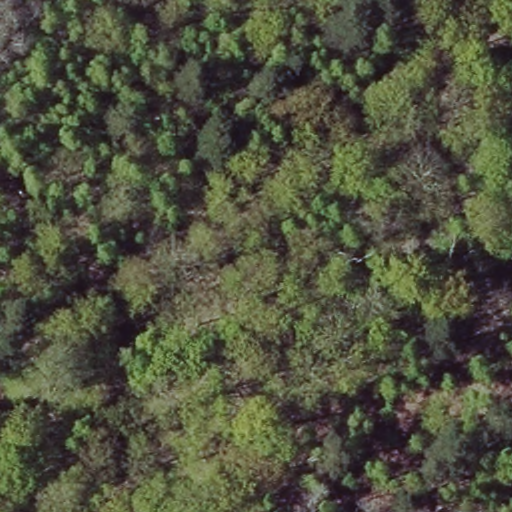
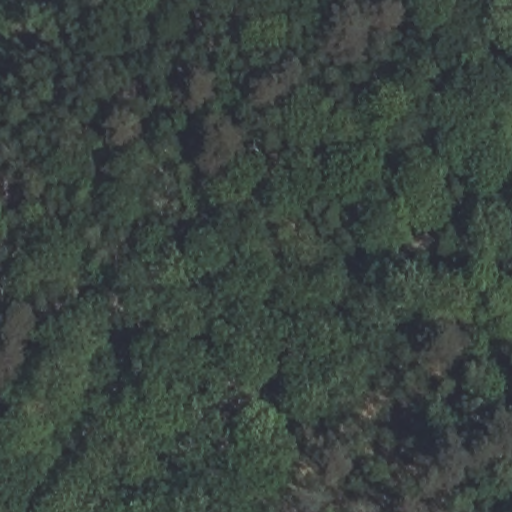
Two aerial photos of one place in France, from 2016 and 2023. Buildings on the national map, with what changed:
unchanged [(512,100),(512,112),(507,102),(512,100)]

